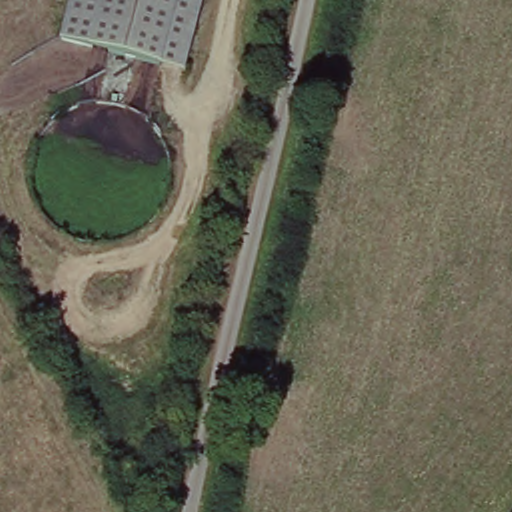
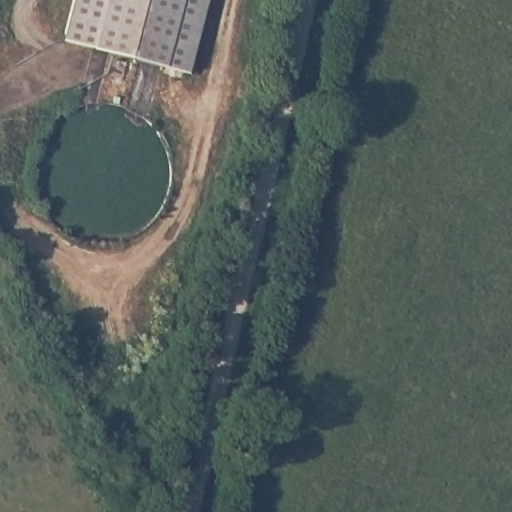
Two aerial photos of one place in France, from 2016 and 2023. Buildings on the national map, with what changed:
unchanged [(57,40),(68,0),(201,0),(182,74),(57,40)]

